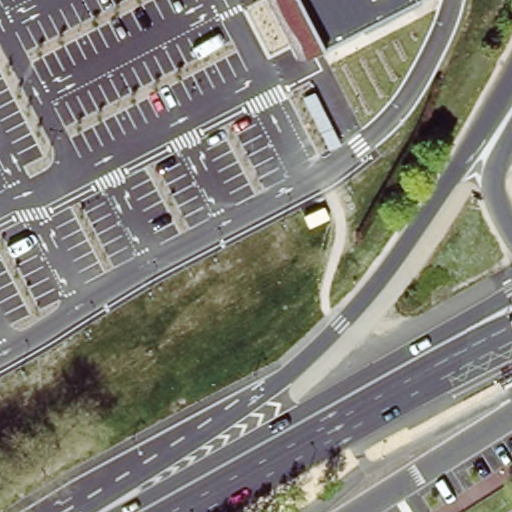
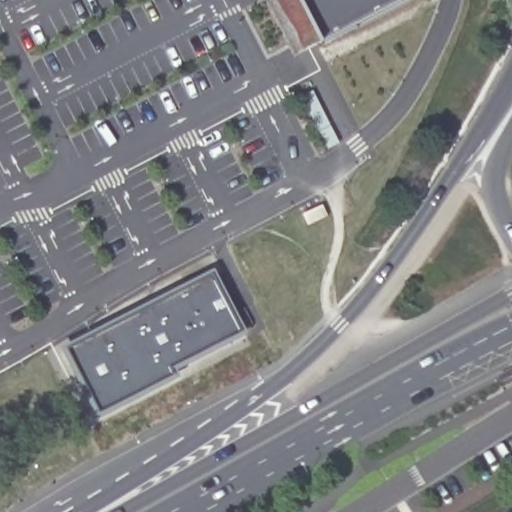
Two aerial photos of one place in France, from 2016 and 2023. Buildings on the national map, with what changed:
unchanged [(292,52),(266,0),(408,0),(305,54),(292,52)]
new [(313,90),(340,143),(329,148),(302,95),(313,90)]
new [(67,350),(214,275),(244,333),(172,369),(175,376),(100,414),(67,350)]

